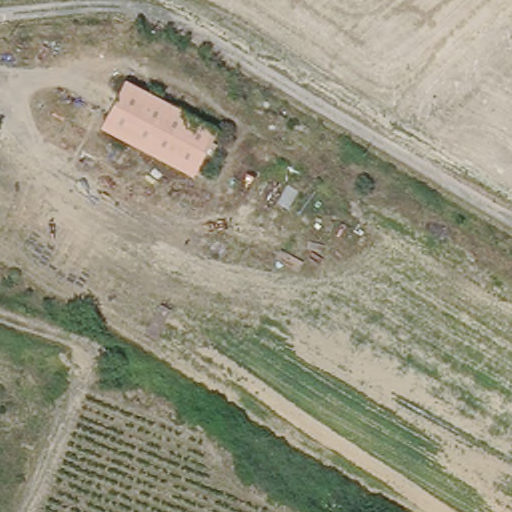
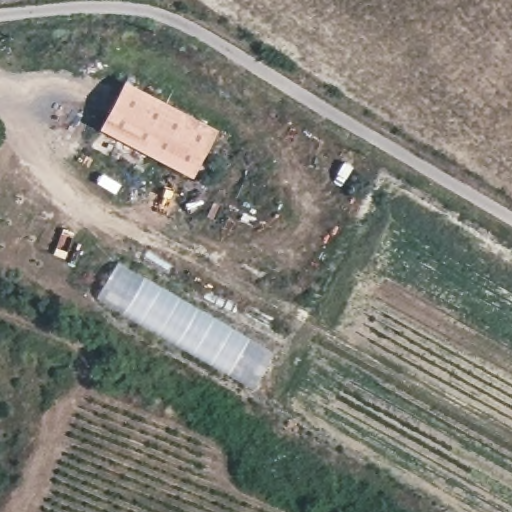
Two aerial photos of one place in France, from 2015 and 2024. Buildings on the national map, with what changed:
unchanged [(191,176),(101,129),(125,83),(215,130),(191,176)]
new [(98,297),(119,263),(273,356),(254,388),(98,297)]

